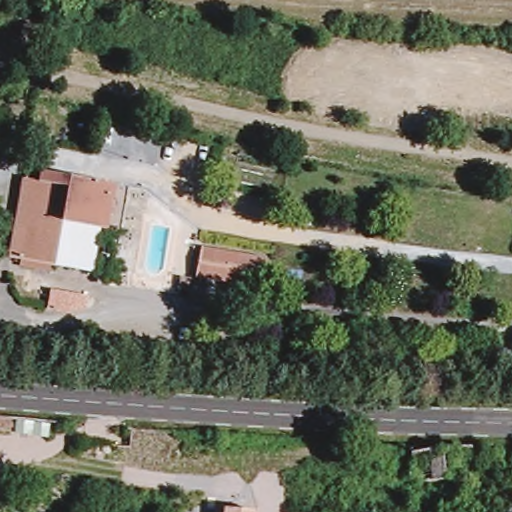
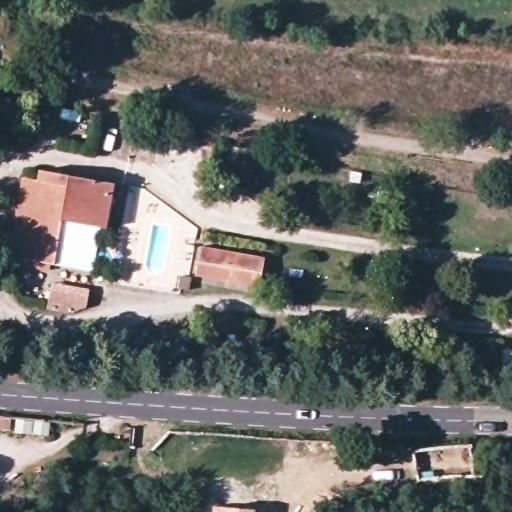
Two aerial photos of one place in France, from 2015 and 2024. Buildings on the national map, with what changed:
unchanged [(17,186),(64,189),(65,177),(112,180),(107,222),(61,219),(56,263),(8,260),(17,186)]
unchanged [(266,254),(262,286),(195,277),(200,243),(266,254)]
unchanged [(477,472),(422,485),(415,454),(472,443),(477,472)]
unchanged [(255,512),(224,512),(224,508),(255,509),(255,512)]

